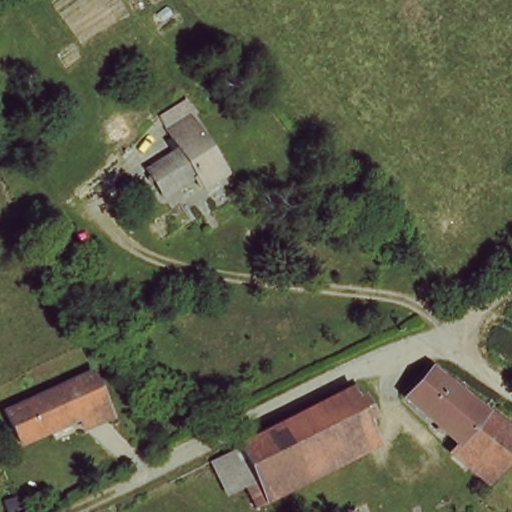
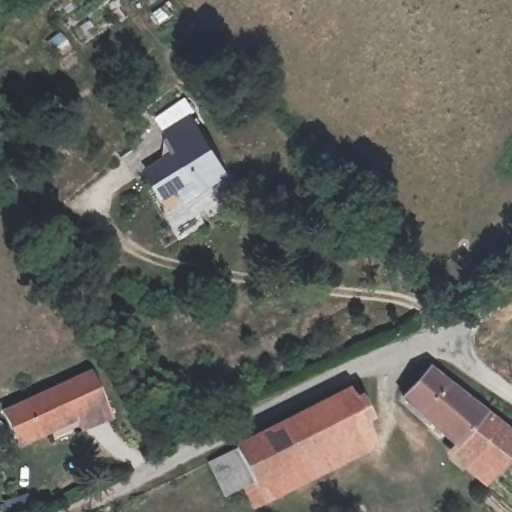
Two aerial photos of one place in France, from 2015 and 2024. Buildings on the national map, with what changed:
unchanged [(202,193),(195,178),(160,197),(148,175),(181,157),(171,139),(195,126),(225,181),(202,193)]
unchanged [(81,433),(76,422),(18,449),(2,421),(93,378),(106,407),(112,420),(81,433)]
unchanged [(455,443),(400,418),(415,382),(512,425),(512,452),(505,466),(499,480),(448,457),(455,443)]
unchanged [(267,482),(276,501),(262,507),(251,483),(259,477),(245,445),(350,389),(371,429),(267,482)]
unchanged [(381,449),(276,501),(267,482),(371,429),(381,449)]

